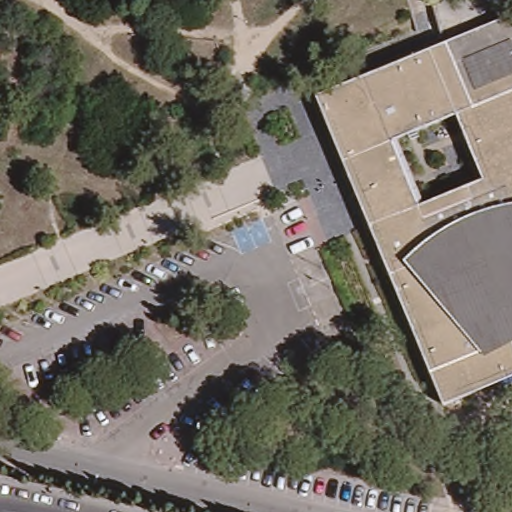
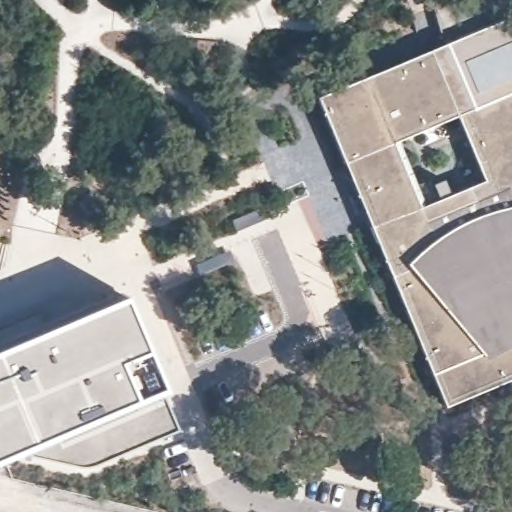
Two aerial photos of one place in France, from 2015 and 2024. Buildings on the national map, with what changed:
unchanged [(512,24),(512,367),(438,397),(310,88),(505,7),(512,24)]
new [(118,288),(173,425),(84,461),(15,447),(12,439),(0,444),(0,336),(118,288)]

